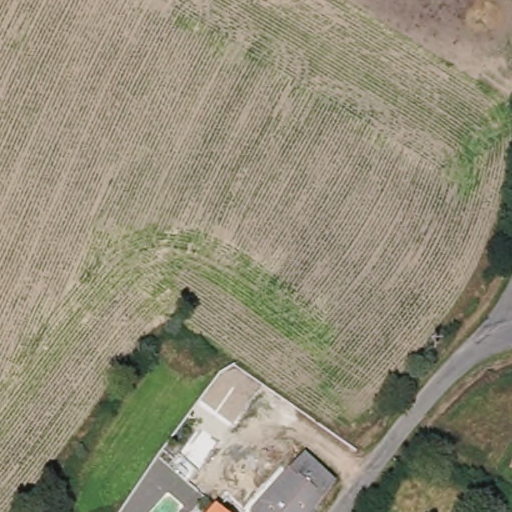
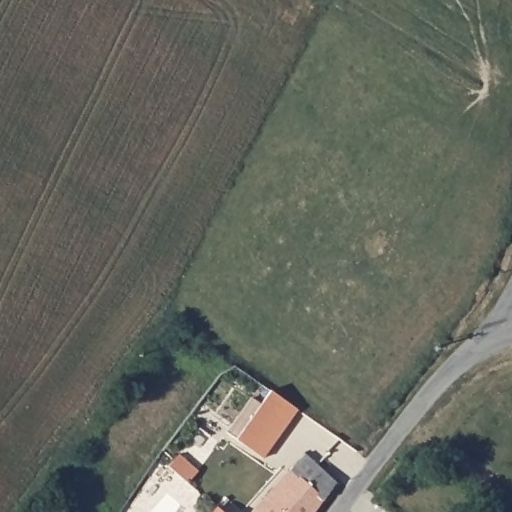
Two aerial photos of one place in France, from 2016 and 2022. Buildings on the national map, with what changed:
new [(226,432),(262,382),(298,407),(262,458),(226,432)]
unchanged [(322,512),(254,512),(308,455),(342,484),(322,512)]
unchanged [(223,512),(215,512),(219,508),(223,512)]

